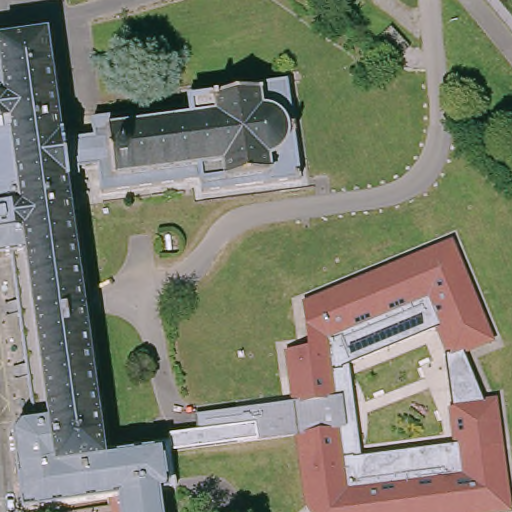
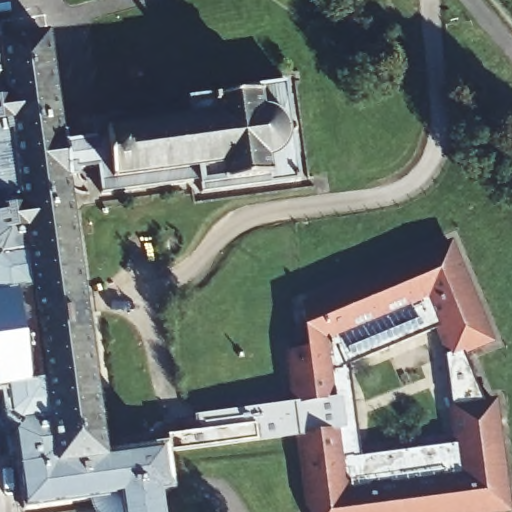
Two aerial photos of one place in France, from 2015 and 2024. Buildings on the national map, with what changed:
unchanged [(50,35),(65,141),(65,153),(77,151),(83,167),(83,176),(70,178),(81,254),(108,451),(143,446),(144,454),(167,450),(171,490),(164,491),(167,512),(116,512),(113,497),(30,508),(18,433),(25,423),(38,421),(15,255),(3,256),(0,254),(0,42),(50,35)]
unchanged [(99,136),(98,132),(186,118),(187,107),(194,106),(193,94),(291,81),(304,178),(206,193),(203,179),(106,193),(102,165),(83,167),(77,151),(65,153),(65,141),(99,136)]
unchanged [(187,107),(186,118),(98,132),(98,120),(187,107)]
unchanged [(497,400),(512,512),(308,512),(305,508),(296,437),(258,442),(173,452),(176,489),(171,490),(167,450),(166,437),(198,432),(196,417),(291,404),(284,352),(308,349),(305,329),(302,303),(452,242),(495,343),(464,356),(483,401),(497,400)]
new [(9,418),(5,391),(0,392),(0,256),(0,255),(3,256),(15,255),(19,285),(38,421),(25,423),(23,427),(9,418)]

